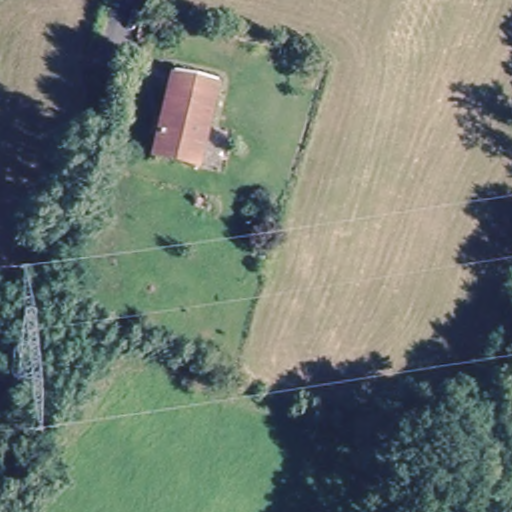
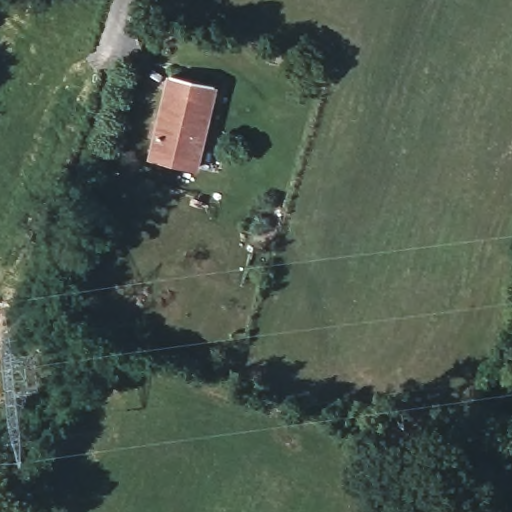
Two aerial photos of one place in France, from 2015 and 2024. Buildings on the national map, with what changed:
unchanged [(173,75),(215,86),(195,168),(153,158),(173,75)]

